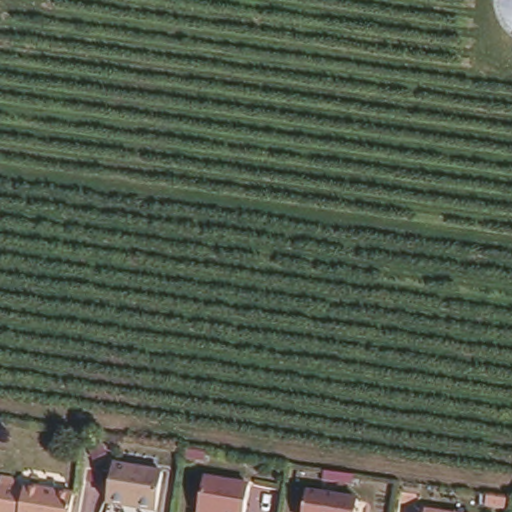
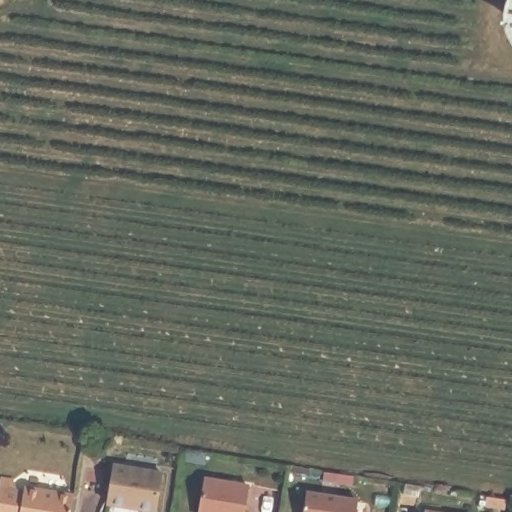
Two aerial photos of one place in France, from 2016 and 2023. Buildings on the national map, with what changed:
unchanged [(160,470),(154,508),(105,501),(111,463),(160,470)]
unchanged [(246,482),(241,512),(201,512),(198,512),(203,475),(246,482)]
unchanged [(0,510),(0,484),(1,481),(30,486),(31,480),(70,488),(66,512),(12,512),(0,510)]
unchanged [(356,494),(353,512),(301,512),(304,485),(356,494)]
unchanged [(446,512),(421,512),(421,509),(446,512)]

